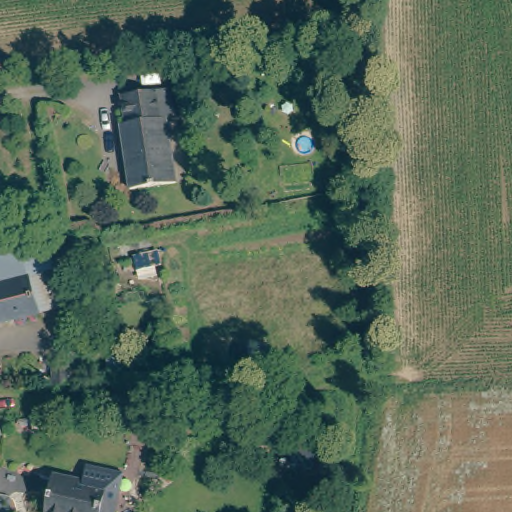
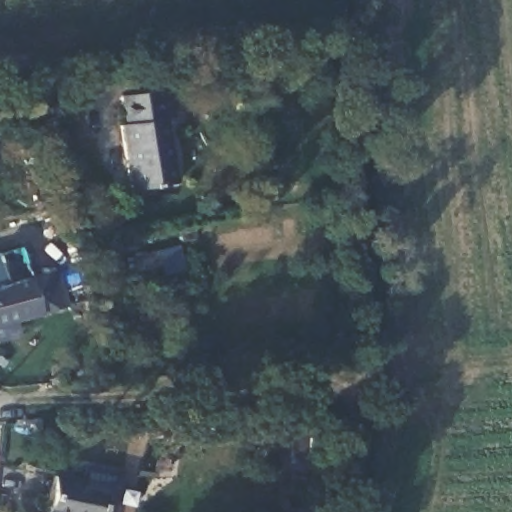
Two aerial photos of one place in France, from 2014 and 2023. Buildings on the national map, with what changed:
unchanged [(122,122),(127,122),(123,93),(172,86),(176,115),(168,116),(177,180),(131,187),(122,122)]
unchanged [(53,269),(67,265),(72,286),(58,289),(63,307),(0,320),(0,280),(53,269)]
unchanged [(67,364),(67,381),(55,383),(54,365),(67,364)]
unchanged [(101,509),(100,512),(46,512),(53,473),(83,479),(86,461),(109,465),(106,484),(120,487),(116,511),(101,509)]

